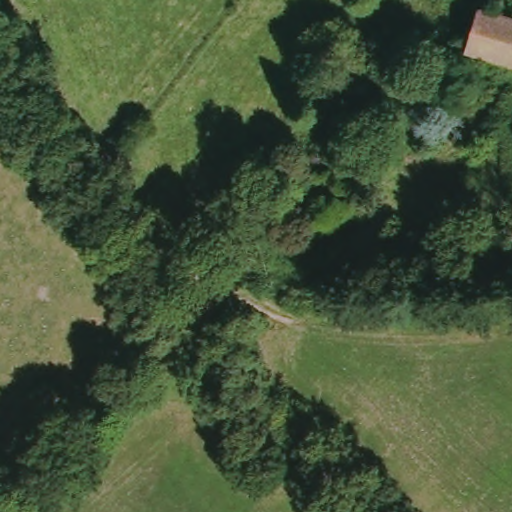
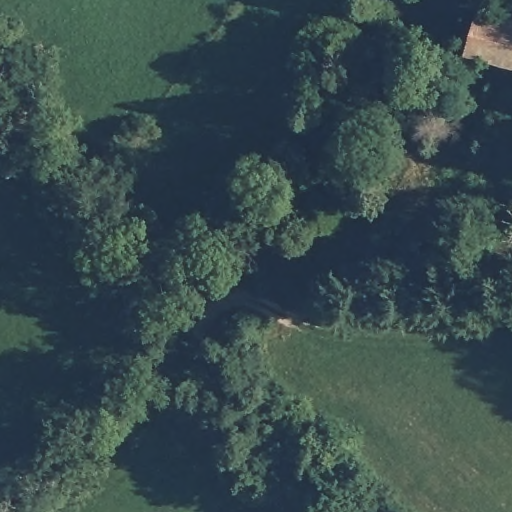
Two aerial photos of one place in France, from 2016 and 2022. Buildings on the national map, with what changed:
unchanged [(481,9),(512,18),(512,66),(468,52),(481,9)]

